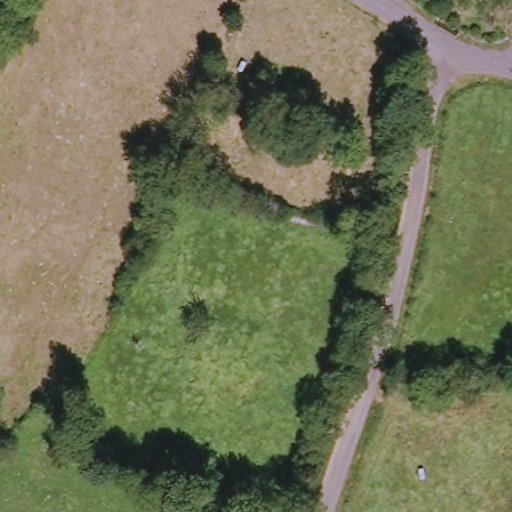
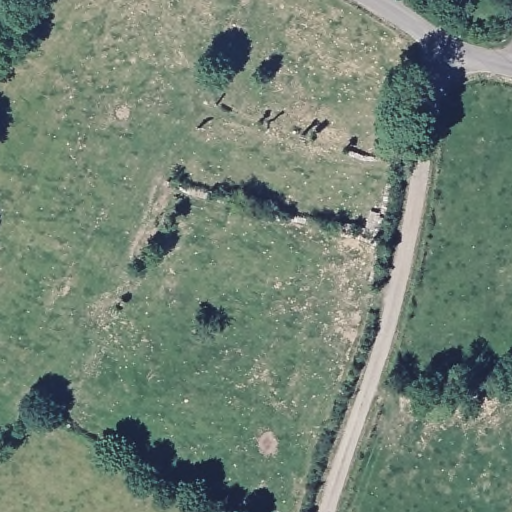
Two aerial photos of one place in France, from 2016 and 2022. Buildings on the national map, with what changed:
[]

